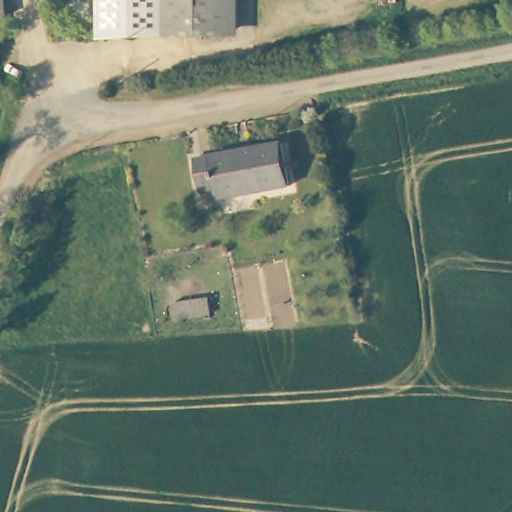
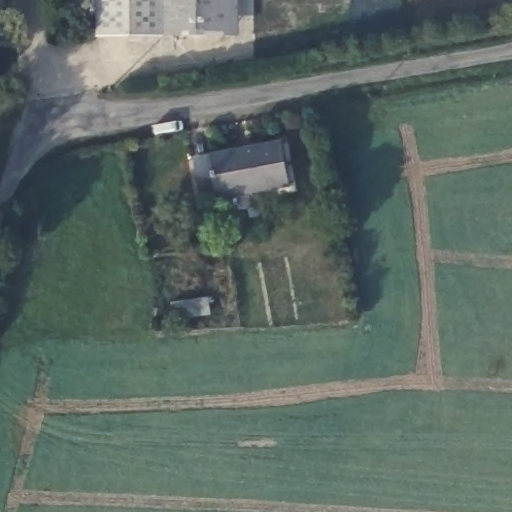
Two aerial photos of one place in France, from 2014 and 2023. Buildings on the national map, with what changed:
unchanged [(8,18),(0,19),(0,0),(6,0),(8,18)]
unchanged [(160,38),(93,39),(92,14),(86,15),(86,0),(160,0),(160,38)]
unchanged [(235,36),(160,38),(160,0),(236,0),(235,36)]
unchanged [(287,187),(214,199),(213,189),(198,192),(193,159),(279,145),(287,187)]

